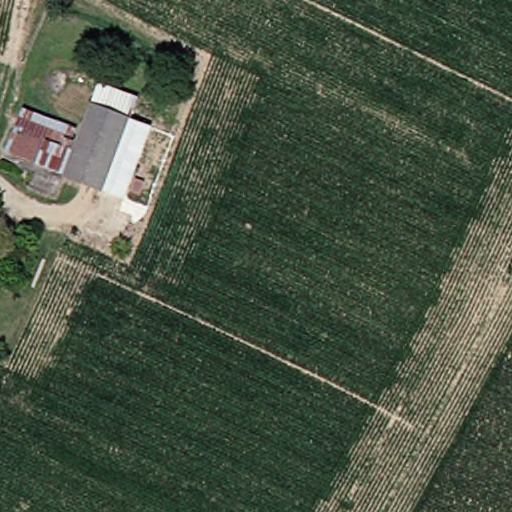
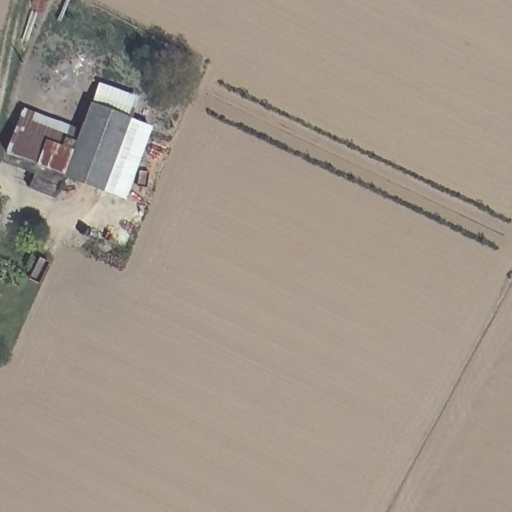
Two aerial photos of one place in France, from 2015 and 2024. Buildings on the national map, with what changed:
unchanged [(123,119),(97,189),(59,174),(68,150),(75,131),(85,104),(123,119)]
unchanged [(11,130),(19,110),(75,131),(68,150),(11,130)]
unchanged [(145,126),(119,196),(97,189),(123,119),(145,126)]
unchanged [(59,174),(50,197),(24,187),(33,164),(3,152),(11,130),(68,150),(59,174)]

